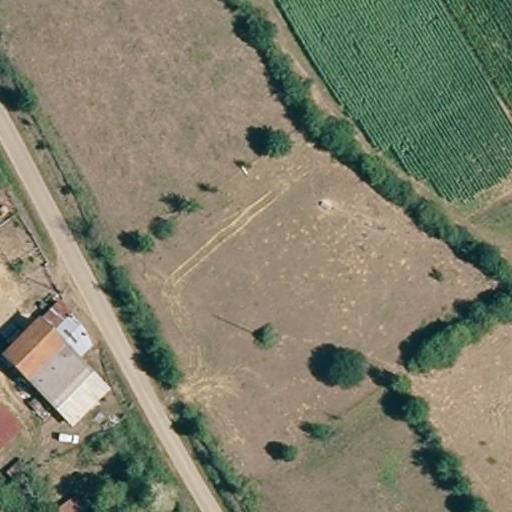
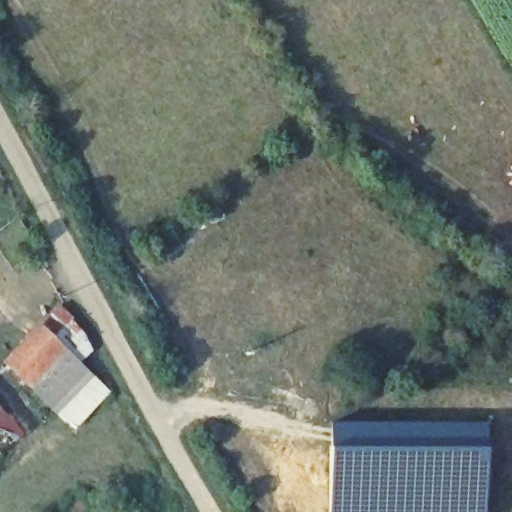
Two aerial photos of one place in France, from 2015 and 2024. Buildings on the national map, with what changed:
unchanged [(55,304),(69,317),(67,319),(70,322),(88,337),(95,348),(96,350),(94,352),(82,366),(98,379),(67,416),(31,386),(4,363),(55,304)]
unchanged [(98,379),(115,393),(84,429),(67,416),(98,379)]
unchanged [(0,413),(0,401),(6,408),(0,413)]
unchanged [(33,434),(0,464),(0,413),(6,408),(33,434)]
new [(484,512),(330,512),(330,420),(484,423),(484,512)]

